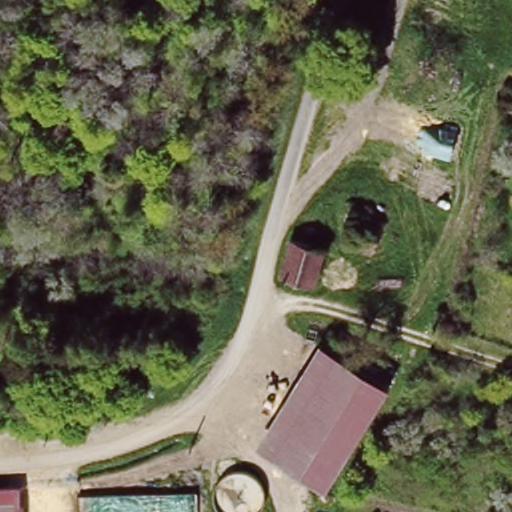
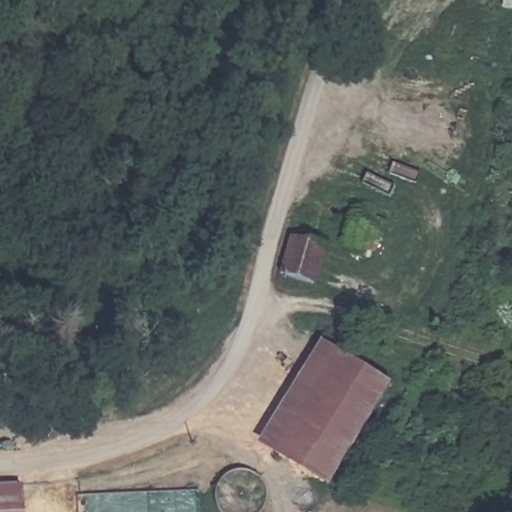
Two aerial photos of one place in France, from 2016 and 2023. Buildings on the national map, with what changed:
unchanged [(375,214),(371,225),(388,232),(379,265),(346,255),(355,225),(343,221),(346,207),(375,214)]
unchanged [(322,252),(316,288),(285,278),(293,245),(322,252)]
unchanged [(416,282),(410,299),(399,296),(404,278),(416,282)]
unchanged [(386,386),(322,499),(250,459),(315,346),(386,386)]
unchanged [(24,493),(24,512),(0,512),(0,492),(24,493)]

